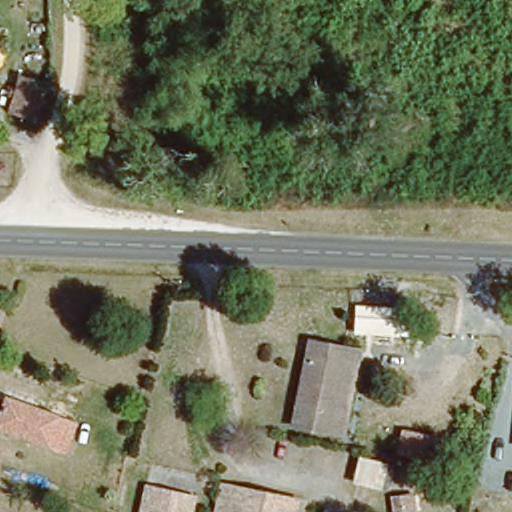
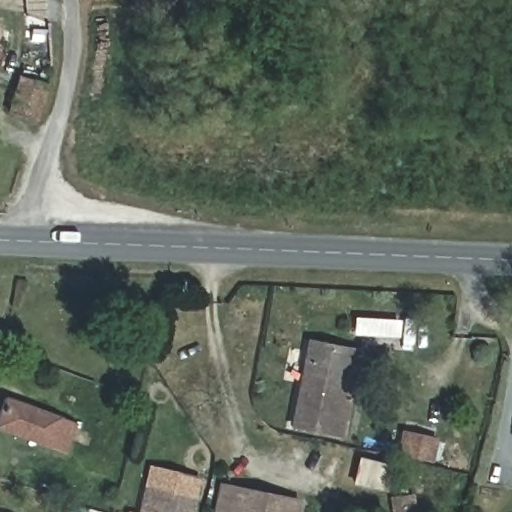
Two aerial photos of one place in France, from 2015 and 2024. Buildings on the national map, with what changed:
unchanged [(11,107),(20,74),(48,82),(38,115),(11,107)]
unchanged [(311,340),(331,342),(345,345),(336,395),(336,396),(330,430),(297,422),(311,340)]
unchanged [(0,425),(0,407),(5,394),(74,420),(63,449),(0,425)]
unchanged [(188,492),(184,512),(136,512),(141,484),(188,492)]
unchanged [(298,512),(220,512),(226,487),(234,488),(300,502),(298,512)]

